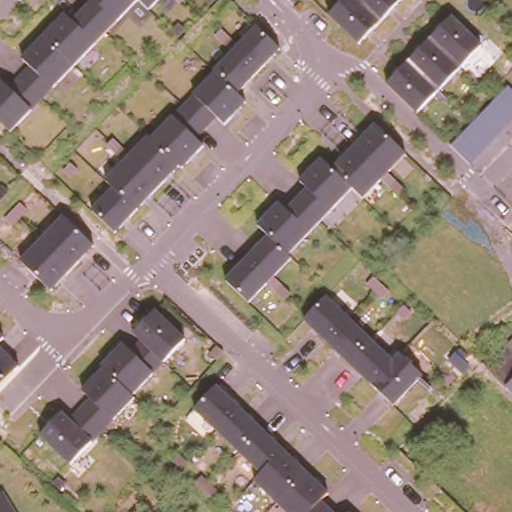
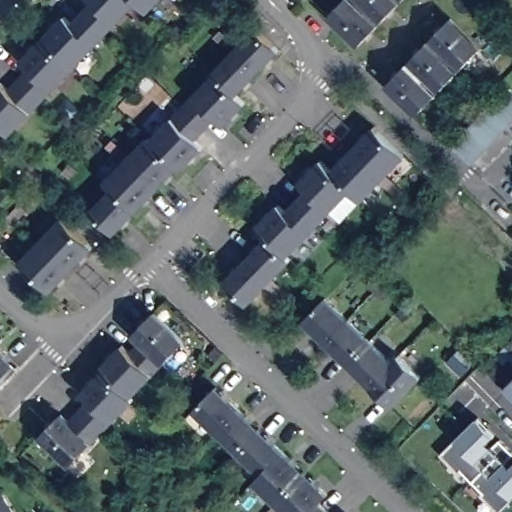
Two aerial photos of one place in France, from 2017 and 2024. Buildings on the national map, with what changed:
unchanged [(8,90),(30,67),(23,60),(65,17),(73,24),(94,1),(92,0),(159,0),(148,12),(138,1),(10,133),(0,124),(0,83),(8,90)]
unchanged [(359,47),(327,17),(343,0),(402,0),(359,47)]
unchanged [(483,45),(417,116),(386,85),(451,16),(483,45)]
unchanged [(278,47),(236,95),(244,104),(224,125),(216,117),(195,138),(204,146),(181,170),(178,167),(114,236),(90,213),(112,189),(106,182),(149,136),(152,139),(256,28),(278,47)]
unchanged [(472,164),(451,146),(512,83),(512,121),(472,164)]
unchanged [(378,125),(407,155),(361,199),(350,193),(332,174),(378,125)]
unchanged [(265,235),(255,226),(278,202),(286,207),(305,186),(299,180),(318,159),(332,174),(350,193),(289,256),(292,259),(253,300),(225,278),(265,235)]
unchanged [(94,247),(52,293),(21,265),(64,219),(94,247)]
unchanged [(326,297),(391,360),(401,351),(428,377),(394,408),(303,321),(326,297)]
unchanged [(188,341),(70,467),(39,437),(63,414),(71,421),(92,400),(83,391),(124,346),(133,353),(140,344),(133,337),(154,313),(188,341)]
unchanged [(4,338),(0,344),(0,335),(4,338)]
unchanged [(512,335),(512,376),(507,382),(486,361),(512,335)]
unchanged [(18,370),(0,388),(0,353),(18,370)]
unchanged [(512,376),(512,387),(507,382),(512,376)]
unchanged [(320,502),(330,512),(284,512),(253,481),(261,473),(194,410),(216,386),(328,493),(320,502)]
new [(512,450),(512,504),(504,512),(491,512),(441,460),(480,419),(512,450)]
unchanged [(0,512),(0,493),(4,491),(16,512),(0,512)]

